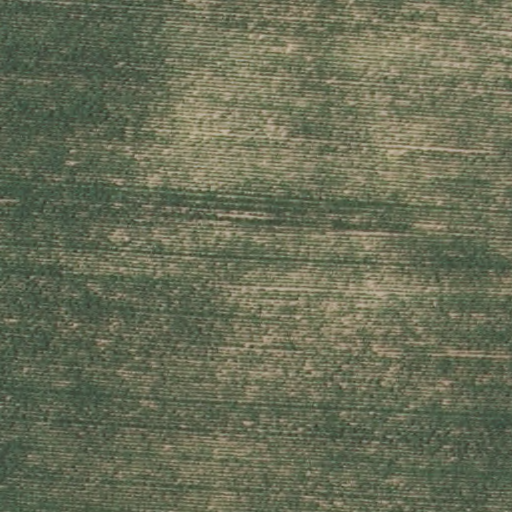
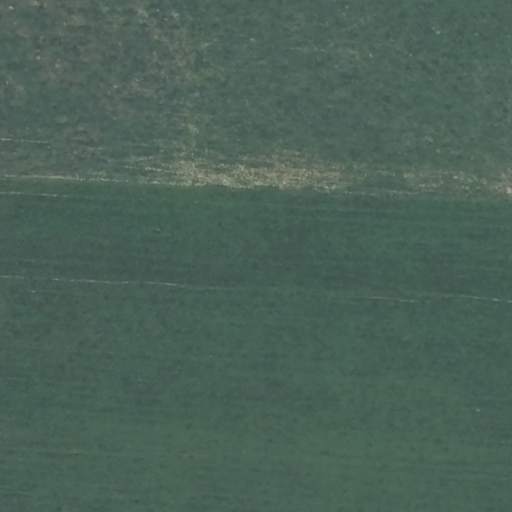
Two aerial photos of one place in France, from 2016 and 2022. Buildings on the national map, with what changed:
[]

